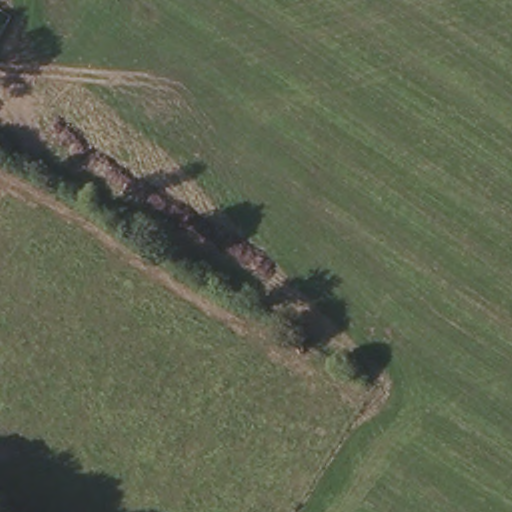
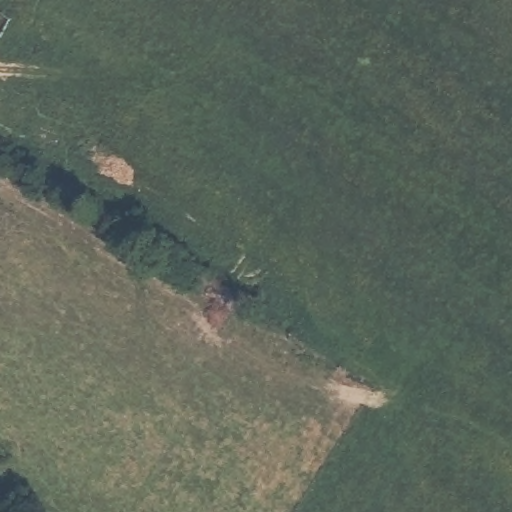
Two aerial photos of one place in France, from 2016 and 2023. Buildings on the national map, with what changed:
[]

